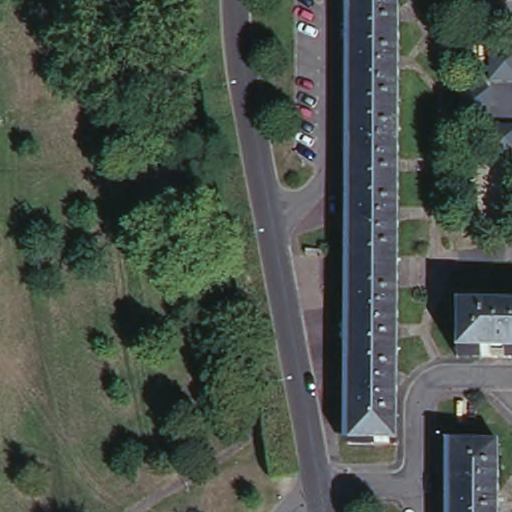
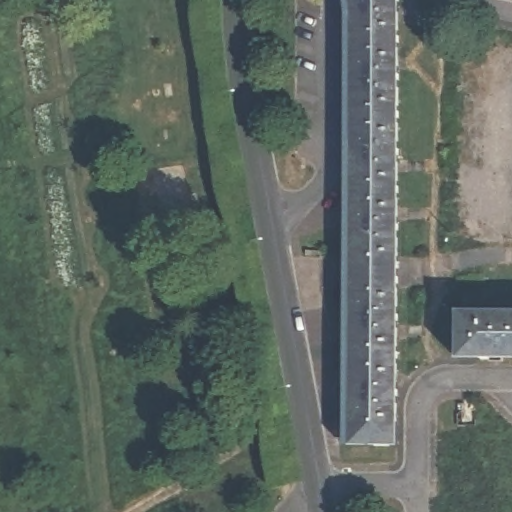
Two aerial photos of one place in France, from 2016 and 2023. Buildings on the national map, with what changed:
unchanged [(395,443),(347,443),(347,370),(347,321),(346,201),(346,154),(345,50),(345,10),(345,3),(344,0),(393,0),(395,443)]
unchanged [(512,53),(512,83),(490,83),(490,53),(512,53)]
unchanged [(489,91),(489,121),(458,121),(458,91),(489,91)]
unchanged [(512,159),(489,159),(489,130),(512,130),(512,159)]
unchanged [(512,357),(457,357),(457,309),(512,310),(512,357)]
demolished [(449,512),(449,493),(449,448),(497,449),(497,512),(449,512)]

